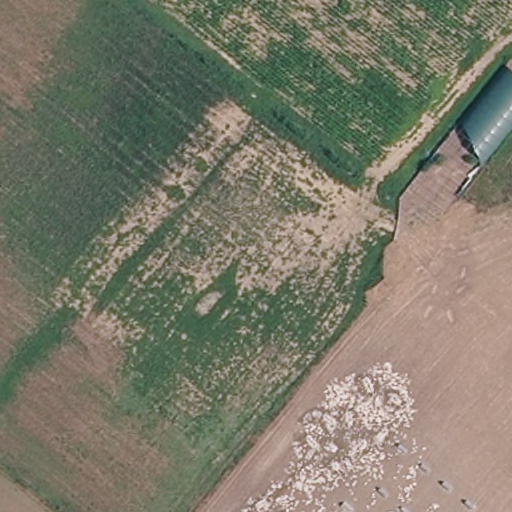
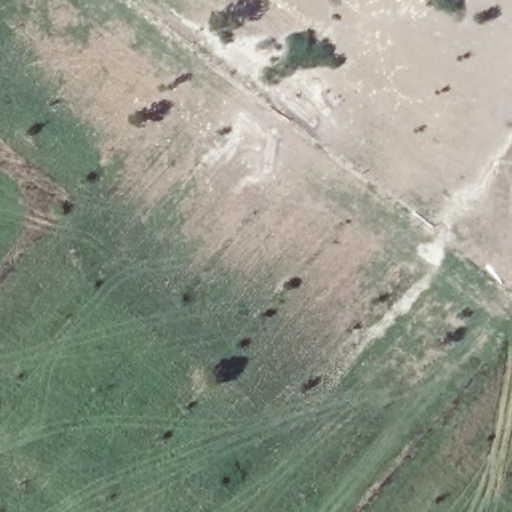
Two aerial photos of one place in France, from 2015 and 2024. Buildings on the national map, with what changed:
demolished [(512,76),(512,122),(465,184),(435,160),(504,70),(512,76)]

